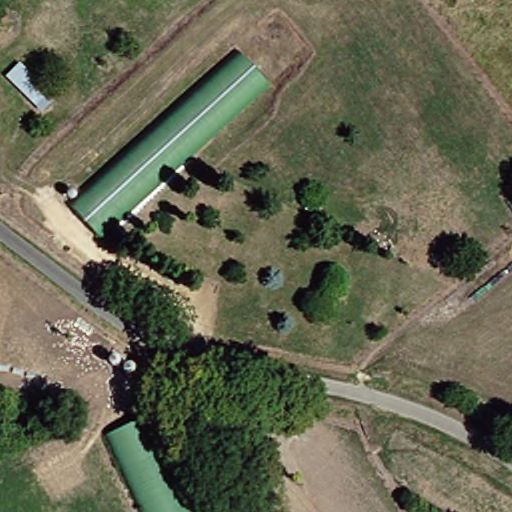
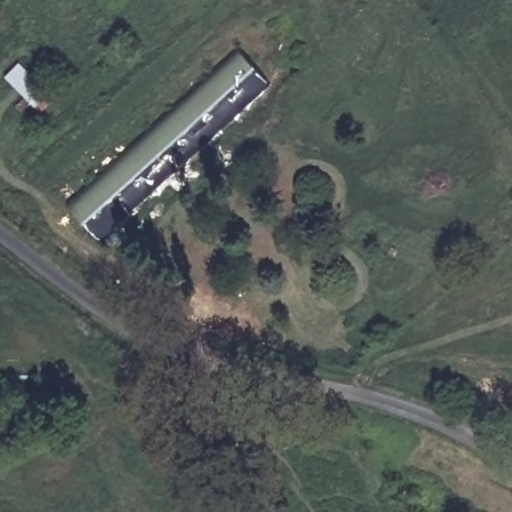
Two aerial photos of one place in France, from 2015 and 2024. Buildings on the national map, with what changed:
unchanged [(67,205),(239,56),(268,89),(98,242),(67,205)]
demolished [(181,512),(133,512),(98,437),(135,417),(181,512)]

